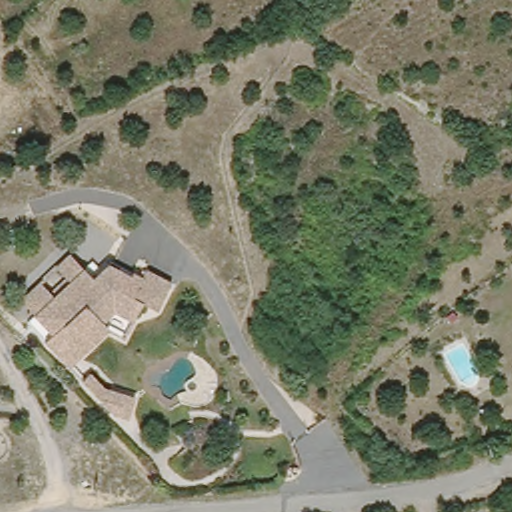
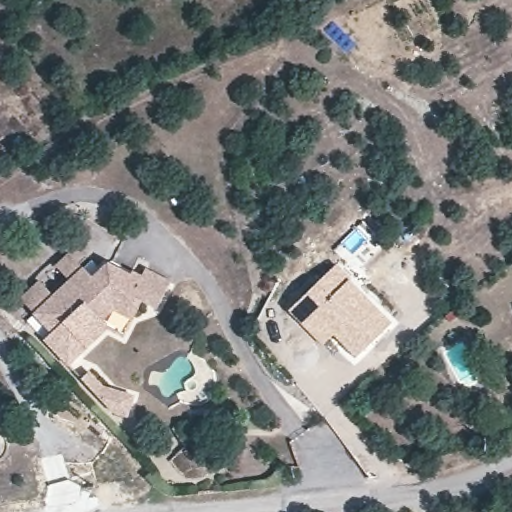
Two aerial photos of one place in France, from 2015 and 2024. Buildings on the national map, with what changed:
unchanged [(62,347),(47,331),(53,325),(37,306),(87,262),(96,261),(101,267),(102,268),(111,258),(120,268),(127,262),(136,267),(145,272),(150,264),(174,278),(158,305),(144,297),(134,314),(125,330),(109,320),(87,339),(69,356),(62,347)]
new [(323,346),(290,313),(335,266),(349,281),(390,324),(356,359),(333,336),(323,346)]
unchanged [(133,413),(121,412),(104,397),(87,382),(93,375),(110,390),(135,392),(133,413)]

